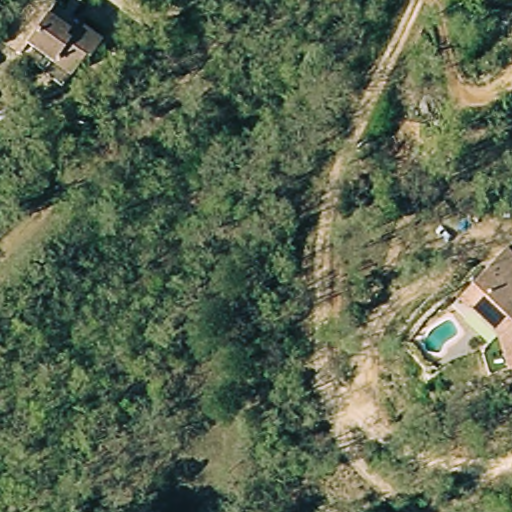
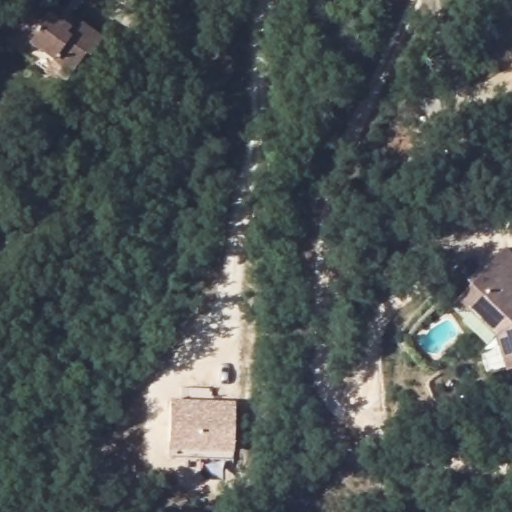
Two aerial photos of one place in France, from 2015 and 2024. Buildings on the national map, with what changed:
unchanged [(46,13),(76,37),(84,31),(103,47),(91,61),(84,56),(68,74),(22,38),(46,13)]
unchanged [(511,370),(510,368),(502,337),(473,307),(462,296),(491,270),(512,249),(512,370),(511,370)]
new [(236,403),(234,450),(169,449),(169,402),(236,403)]

